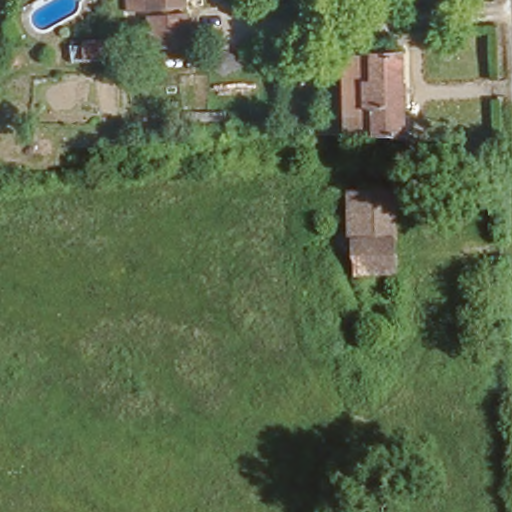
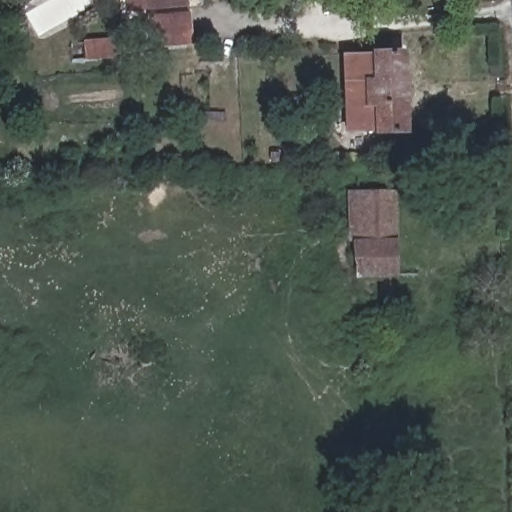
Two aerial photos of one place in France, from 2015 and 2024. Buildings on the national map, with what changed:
unchanged [(197,5),(197,32),(160,33),(159,2),(149,2),(149,0),(192,0),(192,5),(197,5)]
unchanged [(352,124),(350,48),(395,47),(396,114),(396,121),(352,124)]
unchanged [(354,172),(389,172),(388,278),(354,278),(354,172)]

